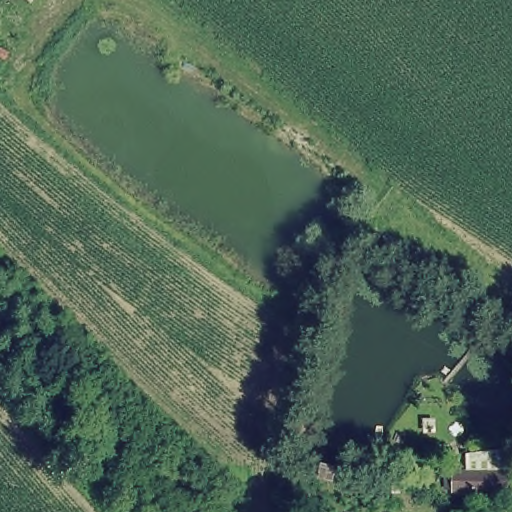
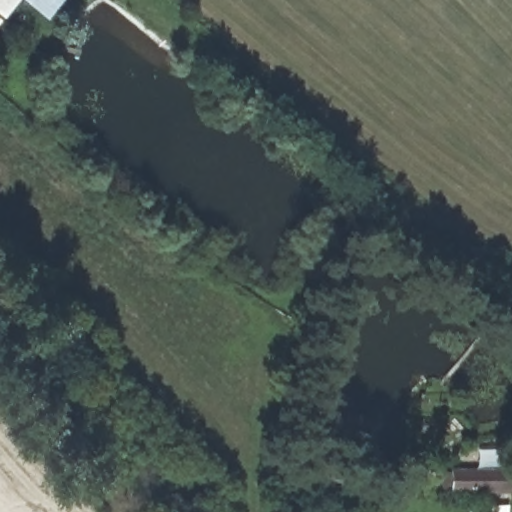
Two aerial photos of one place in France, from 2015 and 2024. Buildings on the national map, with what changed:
new [(0,22),(0,0),(18,0),(2,20),(0,22)]
new [(22,0),(64,0),(47,20),(22,0)]
unchanged [(509,496),(439,491),(441,462),(507,464),(509,496)]

